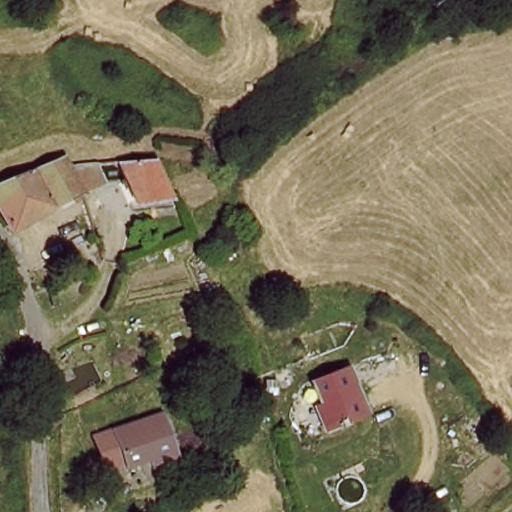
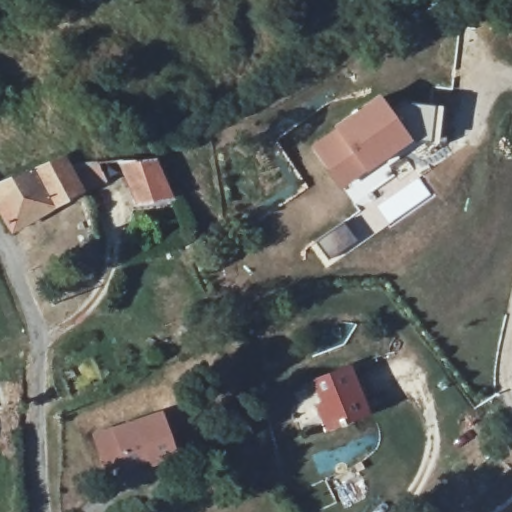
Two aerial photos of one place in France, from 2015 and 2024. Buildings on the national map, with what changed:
new [(334,128),(380,96),(392,112),(406,103),(443,106),(437,144),(412,140),(368,174),(366,171),(343,190),(311,148),(334,128)]
unchanged [(85,191),(24,226),(3,181),(63,146),(71,162),(85,191)]
unchanged [(161,147),(176,193),(140,203),(128,175),(120,154),(161,147)]
unchanged [(120,154),(128,175),(85,191),(71,162),(120,154)]
unchanged [(331,394),(323,366),(361,353),(376,406),(321,424),(306,402),(331,394)]
unchanged [(105,464),(95,430),(170,405),(183,445),(155,456),(151,448),(105,464)]

